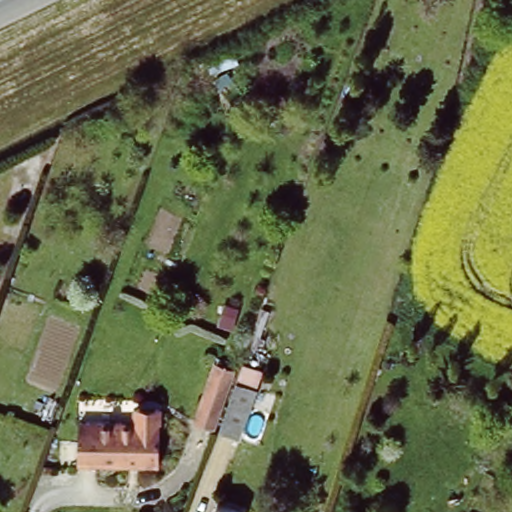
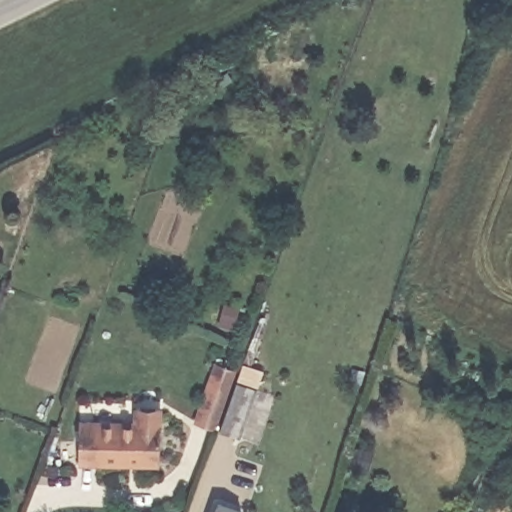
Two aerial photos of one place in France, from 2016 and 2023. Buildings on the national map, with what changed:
unchanged [(238,372),(241,363),(261,371),(238,439),(191,421),(213,362),(238,372)]
unchanged [(75,417),(133,420),(133,405),(158,407),(156,463),(73,459),(75,417)]
unchanged [(212,512),(215,503),(241,512),(212,512)]

